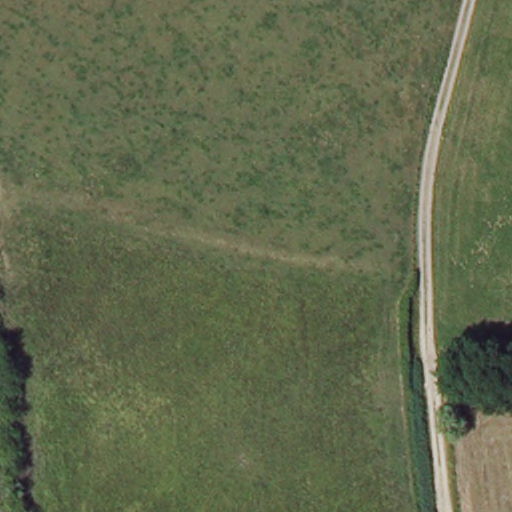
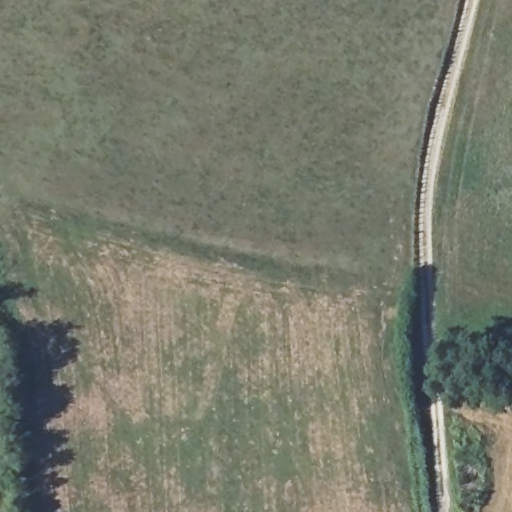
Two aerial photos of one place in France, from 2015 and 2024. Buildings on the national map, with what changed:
[]

